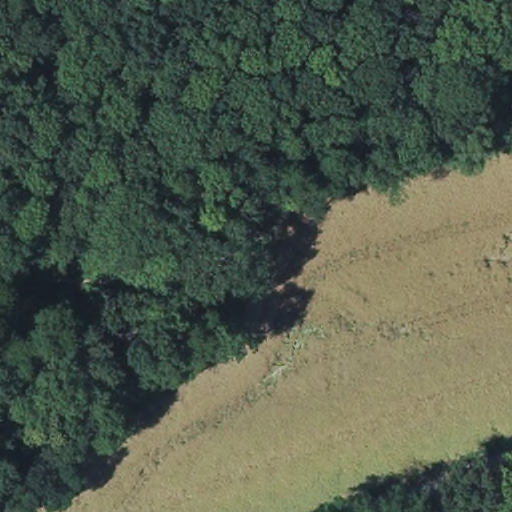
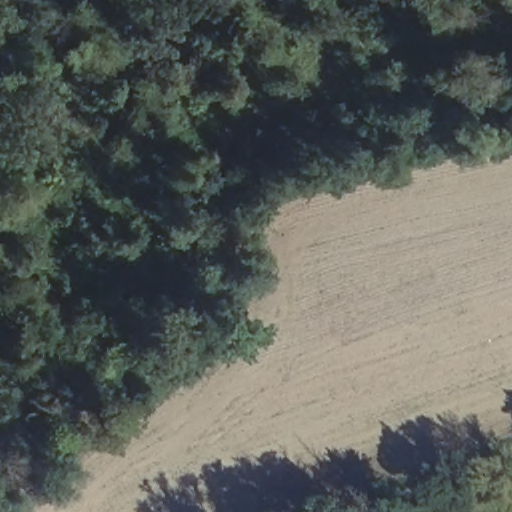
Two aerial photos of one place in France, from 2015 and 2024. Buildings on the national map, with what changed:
[]

